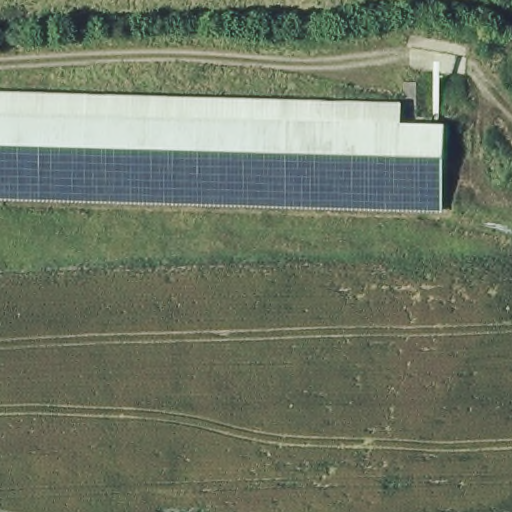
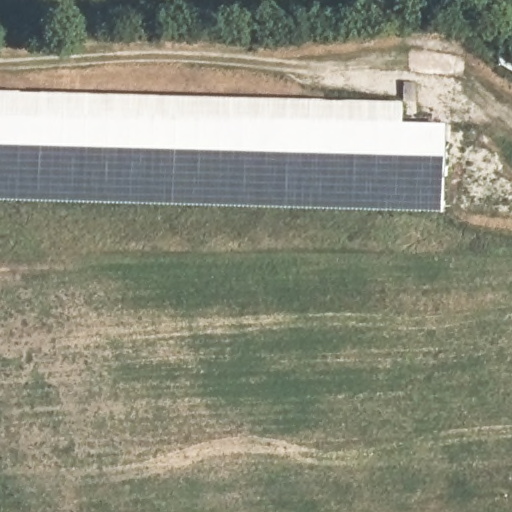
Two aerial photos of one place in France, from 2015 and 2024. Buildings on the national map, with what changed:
unchanged [(0,112),(0,88),(400,99),(401,123),(0,112)]
unchanged [(446,197),(0,183),(0,112),(401,123),(447,125),(446,197)]
unchanged [(446,197),(443,212),(0,200),(0,183),(446,197)]

